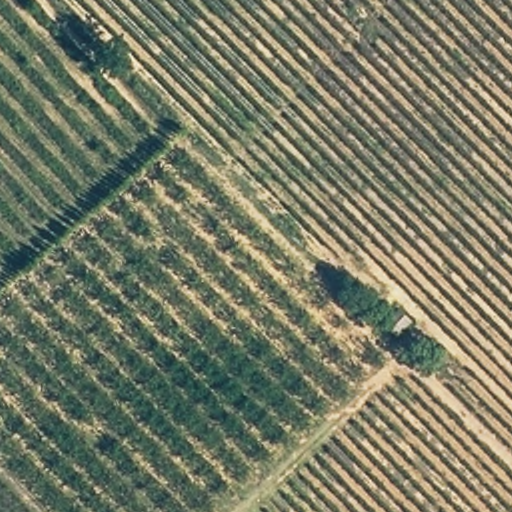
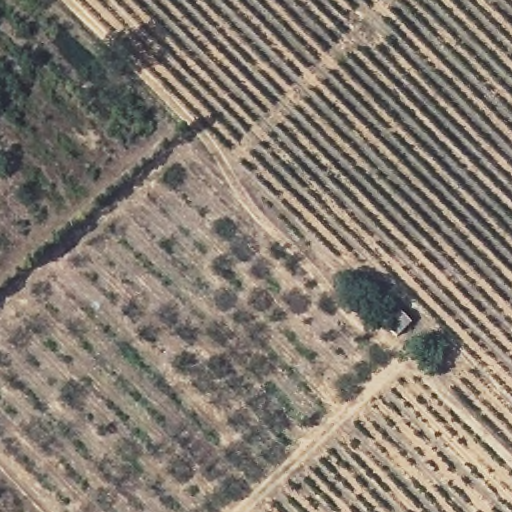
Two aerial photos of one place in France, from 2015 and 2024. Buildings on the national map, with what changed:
unchanged [(413,322),(394,339),(375,322),(393,306),(413,322)]

